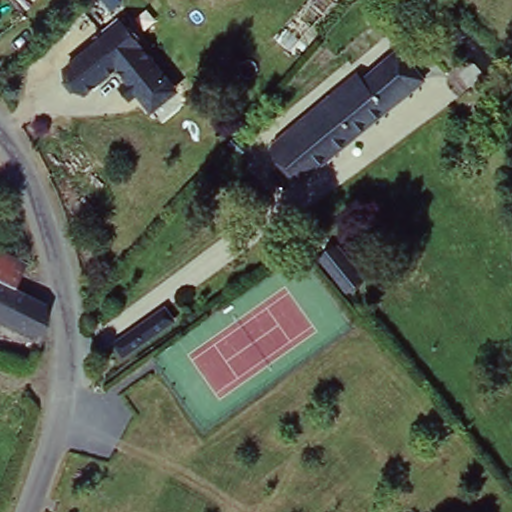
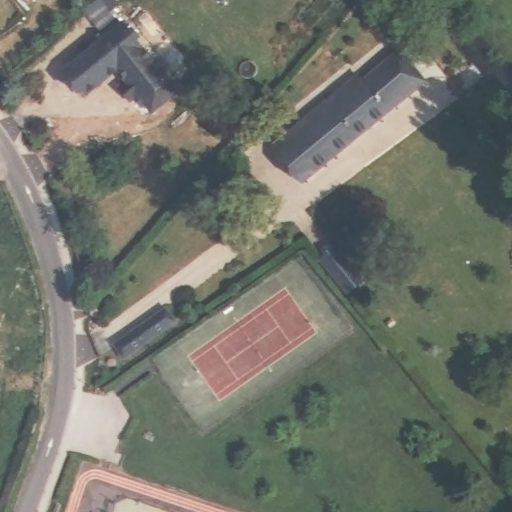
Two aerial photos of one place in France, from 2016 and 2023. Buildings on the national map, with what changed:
unchanged [(102,35),(104,38),(125,21),(181,94),(154,118),(119,71),(82,99),(59,70),(102,35)]
unchanged [(427,80),(307,178),(279,142),(361,74),(366,80),(402,49),(427,80)]
unchanged [(228,144),(235,137),(239,140),(246,146),(241,154),(232,147),(228,144)]
unchanged [(362,273),(347,286),(323,256),(338,244),(362,273)]
demolished [(0,277),(0,249),(22,260),(12,283),(0,277)]
demolished [(41,298),(42,318),(35,315),(28,330),(0,317),(0,277),(12,283),(41,298)]
unchanged [(178,321),(126,356),(119,344),(170,309),(178,321)]

